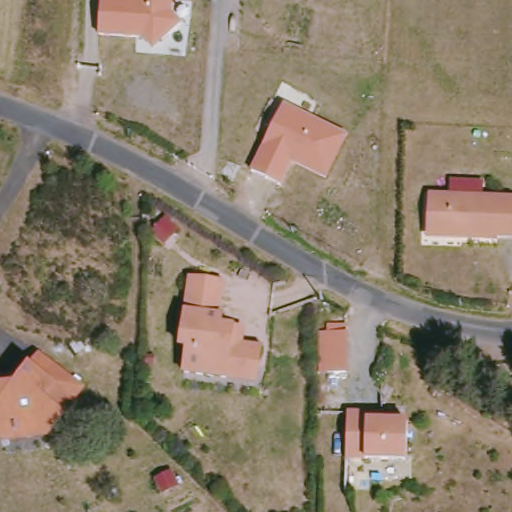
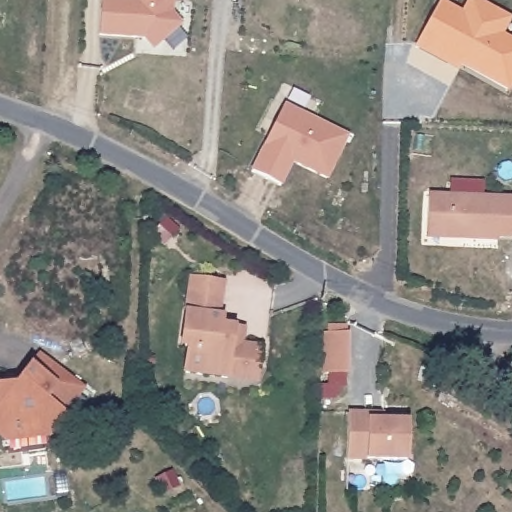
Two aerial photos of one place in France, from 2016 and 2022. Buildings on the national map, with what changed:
unchanged [(163,41),(98,37),(101,0),(108,0),(134,2),(135,0),(171,0),(170,15),(179,26),(163,41)]
new [(449,63),(416,44),(440,2),(462,15),(470,0),(473,0),(489,10),(508,21),(499,36),(512,43),(512,80),(507,90),(461,63),(458,68),(449,63)]
unchanged [(324,177),(294,163),(296,160),(292,158),(278,187),(249,173),(281,106),(344,136),(324,177)]
unchanged [(427,231),(428,196),(512,200),(512,238),(497,238),(497,241),(462,239),(427,237),(427,231)]
unchanged [(163,245),(151,235),(165,220),(176,230),(163,245)]
unchanged [(226,378),(183,371),(186,347),(179,346),(190,278),(223,283),(218,316),(222,317),(221,326),(233,328),(243,329),(241,345),(260,348),(257,368),(255,383),(226,378)]
unchanged [(319,374),(319,363),(320,334),(348,335),(346,375),(319,374)]
unchanged [(43,357),(69,376),(68,378),(83,390),(84,398),(52,437),(41,429),(0,435),(0,434),(0,388),(19,388),(43,357)]
unchanged [(346,460),(348,414),(368,415),(383,415),(383,422),(408,423),(406,462),(346,460)]
unchanged [(171,472),(178,486),(161,493),(156,480),(171,472)]

